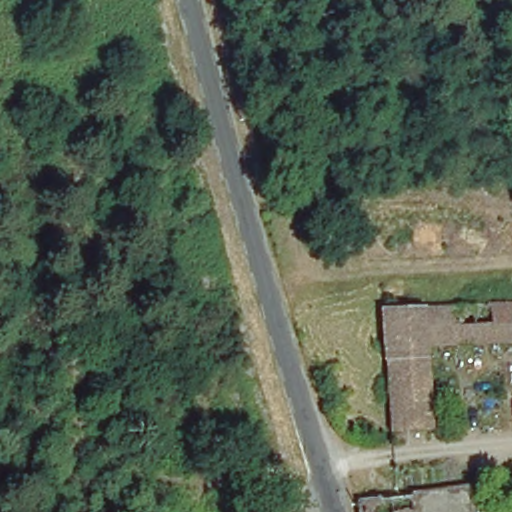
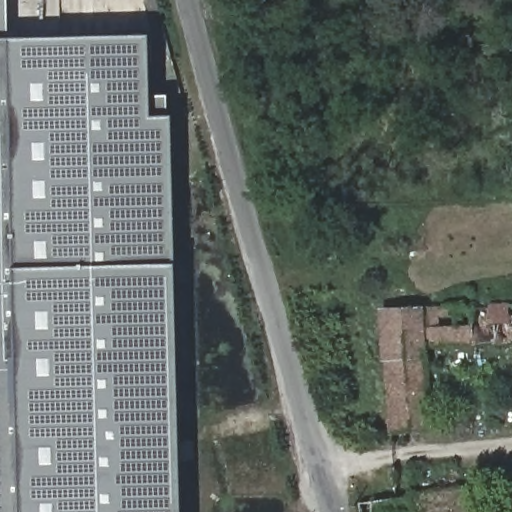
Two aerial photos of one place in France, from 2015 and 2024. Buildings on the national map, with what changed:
new [(6,41),(147,39),(149,117),(171,122),(182,512),(0,512),(0,0),(6,0),(6,41)]
unchanged [(512,306),(512,342),(419,345),(423,429),(385,433),(373,311),(512,306)]
demolished [(457,493),(460,512),(355,512),(354,506),(457,493)]

